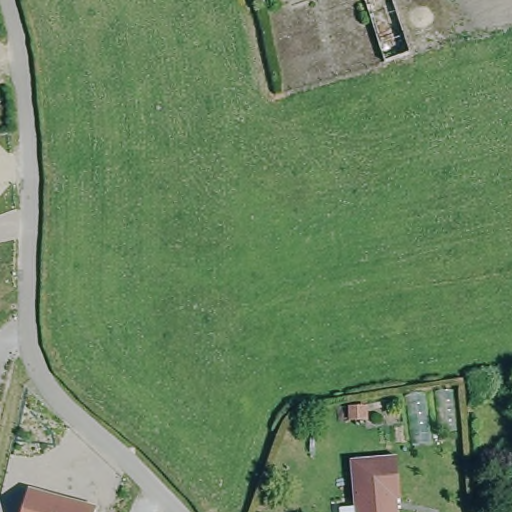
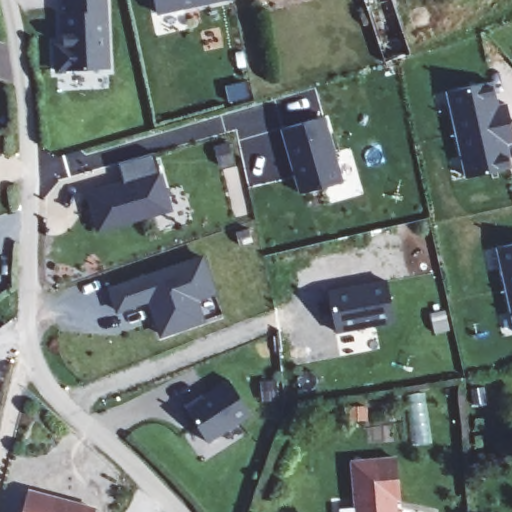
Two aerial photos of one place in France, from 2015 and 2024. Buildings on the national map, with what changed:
new [(59,40),(59,25),(64,25),(65,0),(105,0),(109,72),(60,75),(59,67),(51,66),(50,41),(59,40)]
new [(157,0),(234,0),(160,16),(157,0)]
unchanged [(264,5),(257,7),(255,0),(264,0),(264,2),(264,5)]
unchanged [(386,67),(367,0),(393,0),(411,60),(386,67)]
new [(512,129),(512,143),(508,145),(511,160),(493,164),(495,170),(464,176),(446,92),(494,82),(499,104),(506,102),(512,129)]
new [(299,176),(302,175),(299,164),(296,165),(287,132),(328,120),(346,185),(305,196),(299,176)]
new [(90,192),(126,181),(121,162),(157,152),(174,209),(101,230),(90,192)]
new [(512,245),(512,323),(496,249),(512,245)]
new [(218,292),(197,299),(206,321),(161,337),(148,303),(116,312),(107,287),(204,254),(218,292)]
new [(390,281),(398,320),(339,331),(331,292),(390,281)]
new [(204,397),(205,398),(231,381),(252,415),(209,443),(187,408),(204,397)]
unchanged [(399,500),(393,501),(394,512),(354,512),(350,463),(395,460),(399,500)]
unchanged [(28,490),(96,507),(94,512),(21,512),(28,490)]

